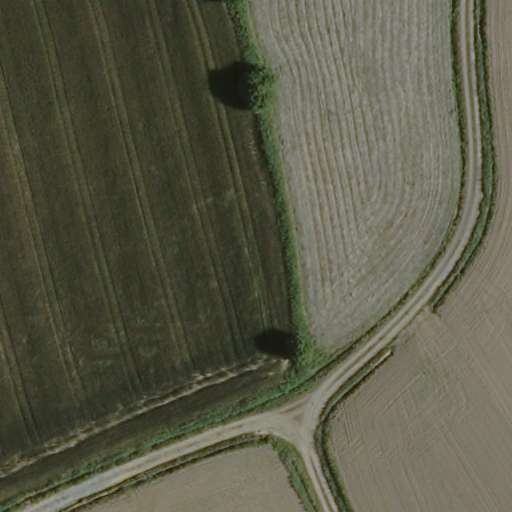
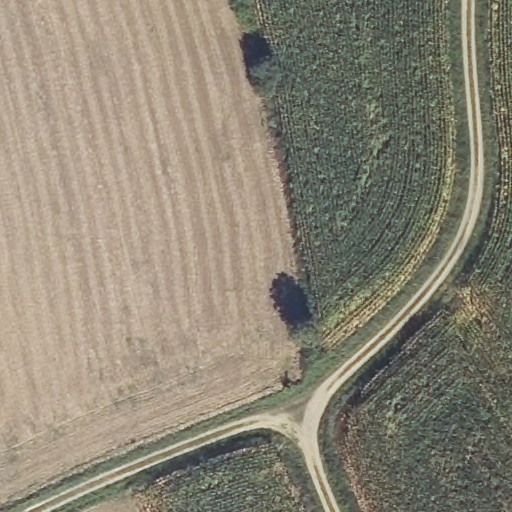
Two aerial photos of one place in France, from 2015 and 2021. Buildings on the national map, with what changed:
[]

